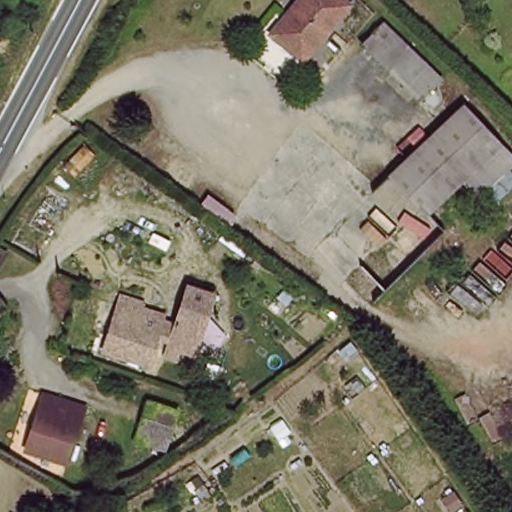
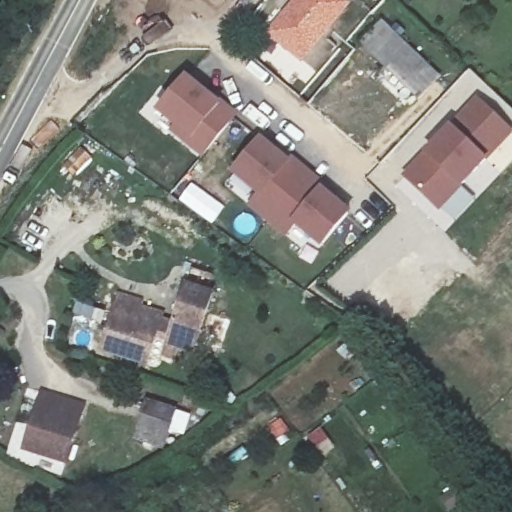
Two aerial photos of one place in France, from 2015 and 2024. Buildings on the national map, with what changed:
unchanged [(275,26),(299,0),(354,0),(306,54),(275,26)]
unchanged [(426,97),(366,42),(387,21),(445,75),(426,97)]
new [(186,79),(235,118),(204,157),(173,133),(178,126),(161,111),(186,79)]
unchanged [(459,183),(422,216),(387,174),(470,101),(489,121),(480,129),(497,150),(459,183)]
new [(284,238),(246,207),(257,195),(230,173),(260,138),(276,152),(279,146),(338,196),(335,200),(350,213),(321,248),(295,228),(284,238)]
unchanged [(497,150),(512,166),(474,200),(459,183),(497,150)]
unchanged [(125,306),(134,309),(136,302),(149,306),(147,312),(169,318),(167,324),(180,327),(187,304),(191,288),(218,295),(211,321),(201,356),(186,352),(183,361),(171,358),(176,343),(163,340),(155,368),(111,356),(125,306)]
unchanged [(66,453),(24,440),(39,401),(79,414),(66,453)]
unchanged [(166,453),(137,444),(147,407),(177,416),(166,453)]

